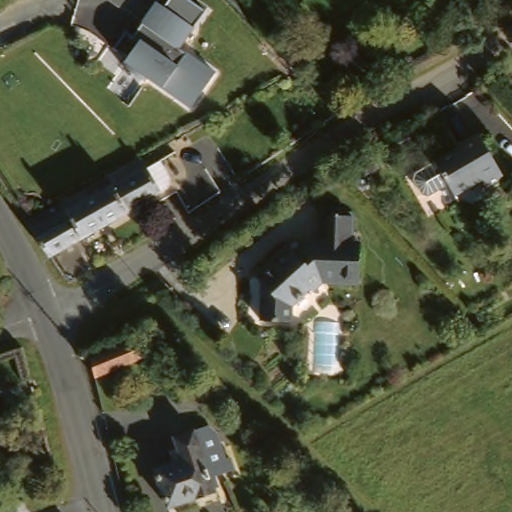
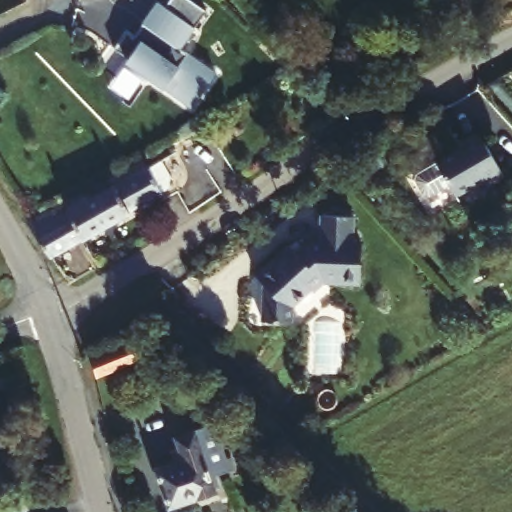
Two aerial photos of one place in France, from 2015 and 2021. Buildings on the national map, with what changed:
unchanged [(126,30),(135,36),(157,1),(165,7),(170,0),(189,0),(206,10),(182,47),(216,71),(192,108),(112,52),(126,30)]
unchanged [(431,192),(423,178),(425,171),(446,160),(444,158),(463,146),(462,143),(487,128),(512,169),(493,180),(488,174),(461,189),(457,183),(437,193),(431,192)]
unchanged [(148,154),(155,165),(171,155),(182,173),(167,182),(169,184),(127,209),(130,212),(94,236),(72,200),(148,154)]
unchanged [(72,200),(94,236),(66,255),(42,219),(72,200)]
unchanged [(330,211),(362,213),(362,234),(371,234),(367,275),(331,273),(319,282),(317,279),(309,284),(278,254),(299,238),(306,246),(315,239),(327,239),(330,211)]
unchanged [(297,294),(296,311),(267,310),(268,273),(263,266),(278,254),(309,284),(297,294)]
unchanged [(151,348),(102,368),(96,352),(145,332),(151,348)]
unchanged [(217,448),(223,464),(216,466),(204,471),(211,490),(196,496),(200,506),(186,512),(180,512),(177,503),(167,507),(154,472),(157,471),(151,459),(154,443),(189,431),(197,455),(210,450),(217,448)]

